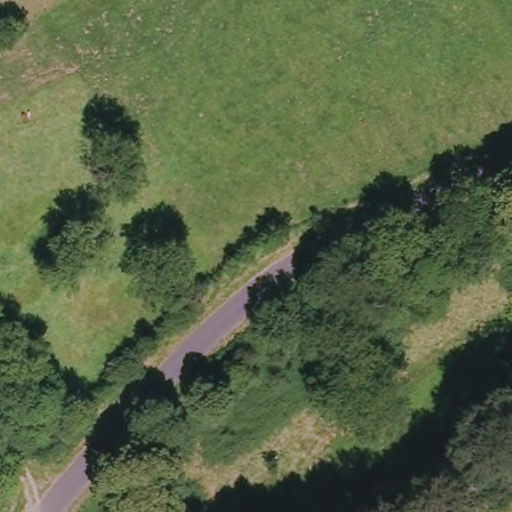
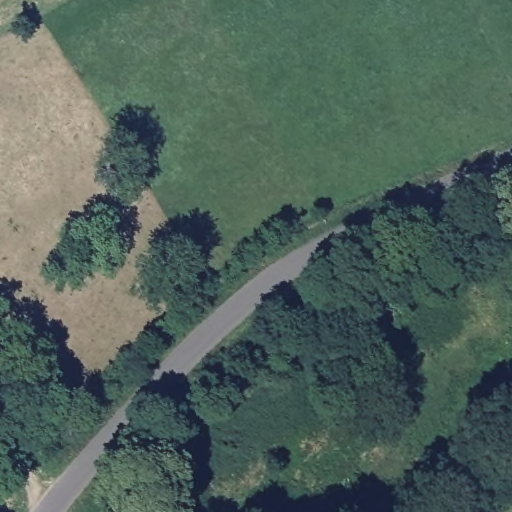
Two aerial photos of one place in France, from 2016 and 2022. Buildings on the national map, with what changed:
unchanged [(5,381),(0,389),(0,378),(5,381)]

